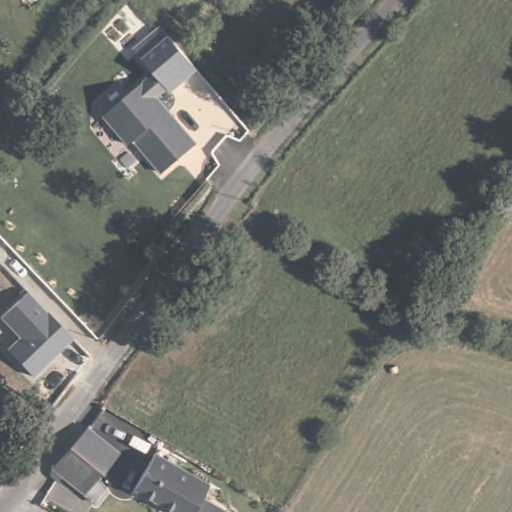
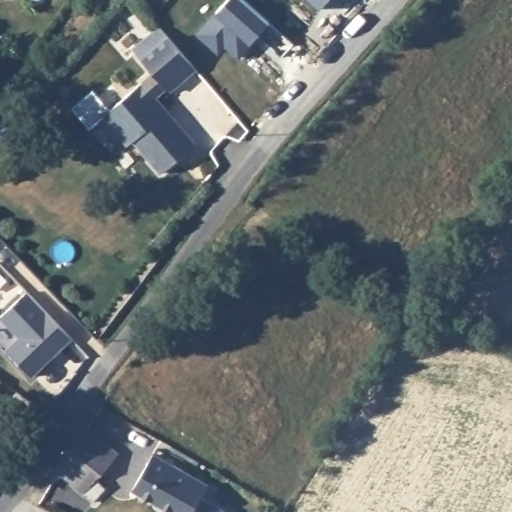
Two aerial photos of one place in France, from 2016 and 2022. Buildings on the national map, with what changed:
new [(236,60),(223,47),(216,55),(193,33),(214,11),(225,0),(242,0),(269,25),(250,45),(236,60)]
new [(309,0),(326,0),(319,9),(309,0)]
unchanged [(128,146),(100,111),(153,69),(142,55),(171,31),(199,70),(162,100),(197,144),(159,171),(133,140),(128,146)]
unchanged [(29,291),(71,340),(33,375),(7,350),(19,337),(2,317),(29,291)]
unchanged [(0,390),(0,375),(8,380),(0,390)]
unchanged [(86,425),(116,448),(103,466),(98,473),(110,482),(95,501),(53,468),(72,444),(86,425)]
unchanged [(208,493),(201,505),(211,512),(158,512),(132,497),(154,461),(208,493)]

